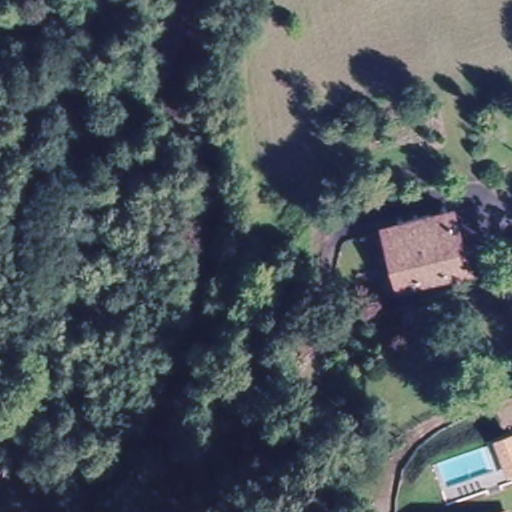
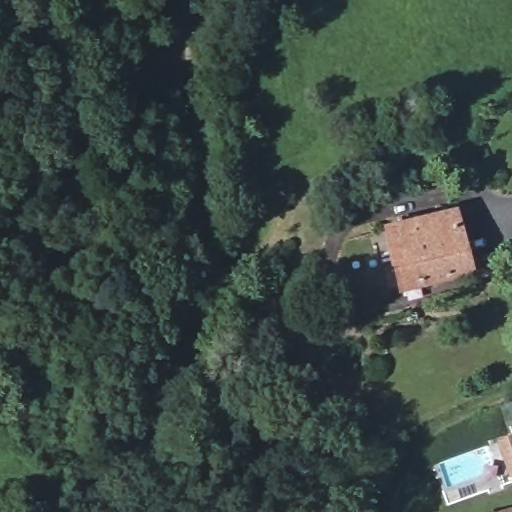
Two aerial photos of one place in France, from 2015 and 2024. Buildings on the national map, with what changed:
unchanged [(386,258),(379,222),(487,200),(500,265),(391,287),(368,292),(362,263),(386,258)]
unchanged [(512,445),(512,475),(504,447),(512,445)]

